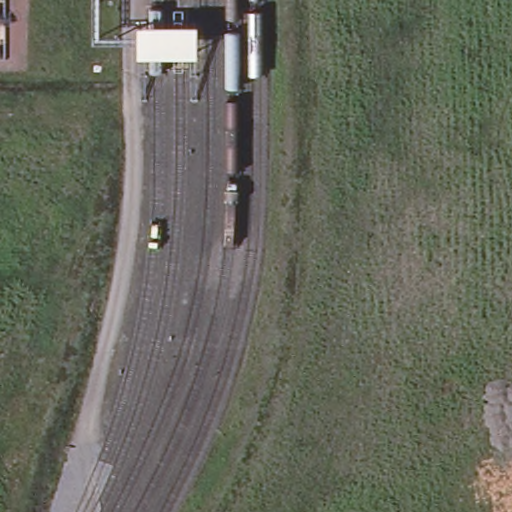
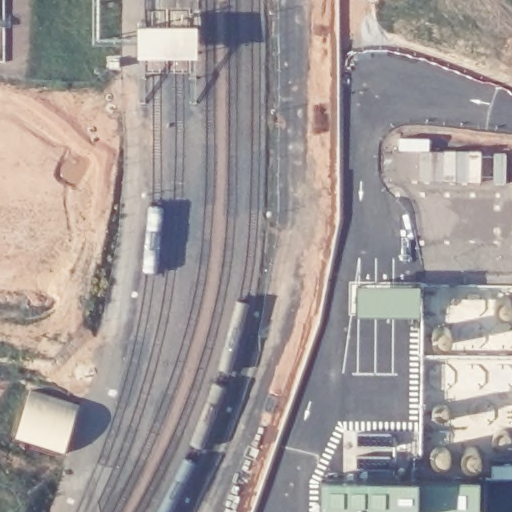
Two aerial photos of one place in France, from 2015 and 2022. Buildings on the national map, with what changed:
new [(80,404),(68,452),(14,437),(28,386),(80,404)]
new [(478,512),(319,512),(319,485),(479,488),(478,512)]

